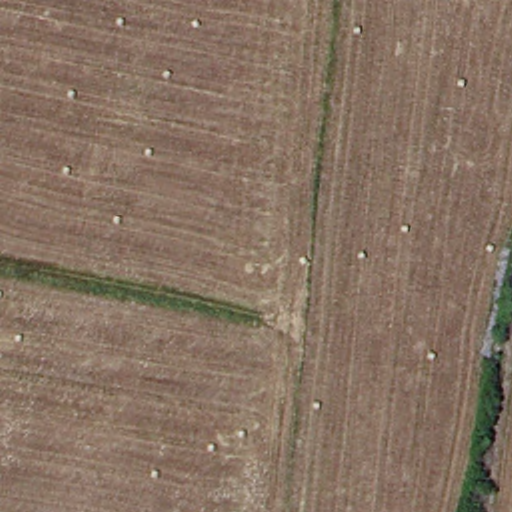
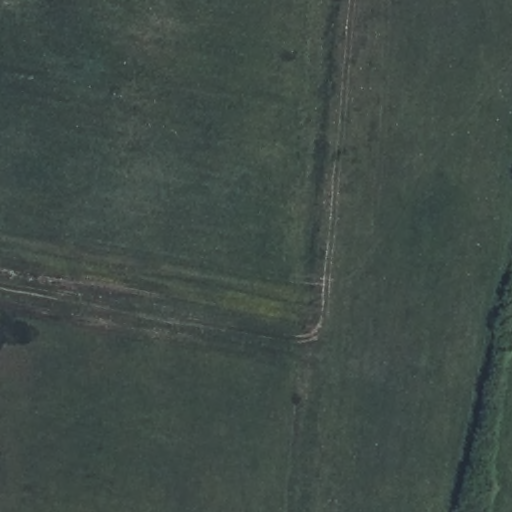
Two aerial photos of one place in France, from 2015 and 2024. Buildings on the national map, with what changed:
[]

